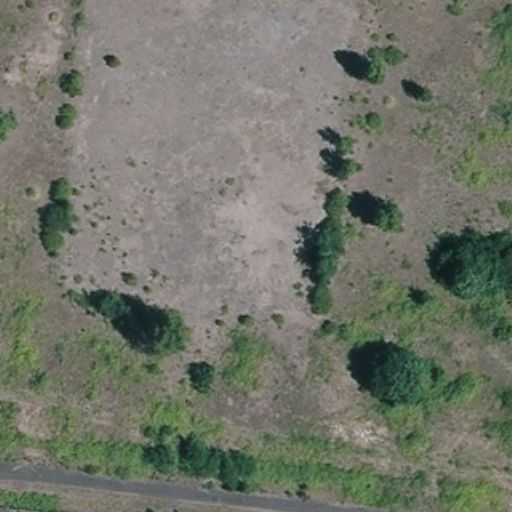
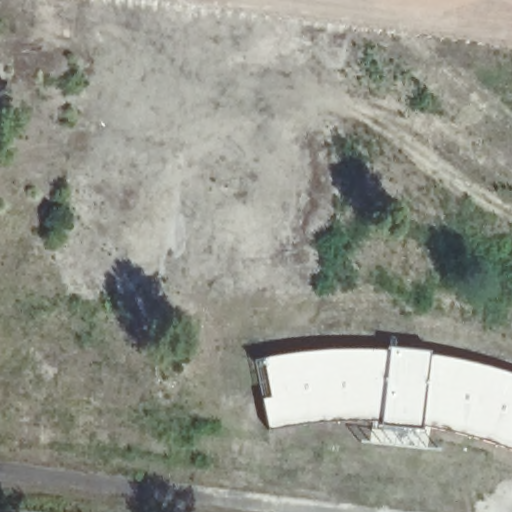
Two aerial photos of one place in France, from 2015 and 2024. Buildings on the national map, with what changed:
new [(501,444),(476,435),(438,426),(422,421),(421,430),(380,425),(380,418),(354,419),(323,420),(304,422),(269,428),(262,398),(270,396),(262,357),(276,355),(304,351),(332,349),(354,349),(387,349),(387,345),(429,350),(429,355),(446,357),(470,362),(494,368),(512,373),(512,449),(501,444)]

